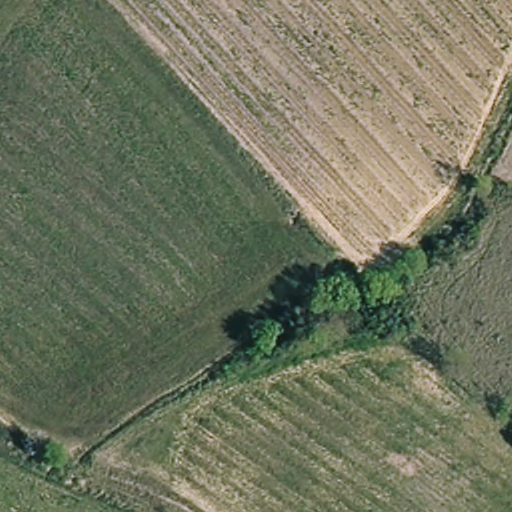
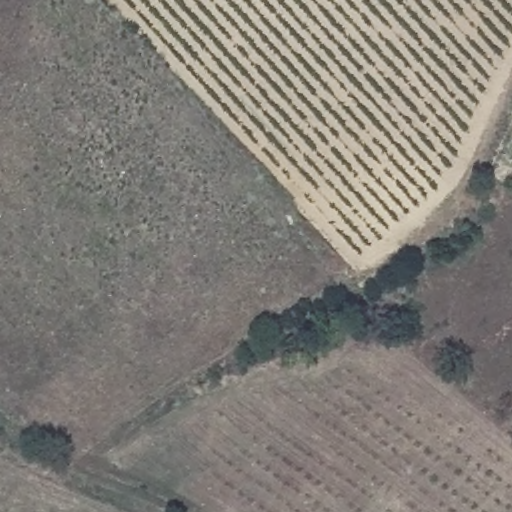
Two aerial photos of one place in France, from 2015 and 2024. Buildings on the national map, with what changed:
[]

